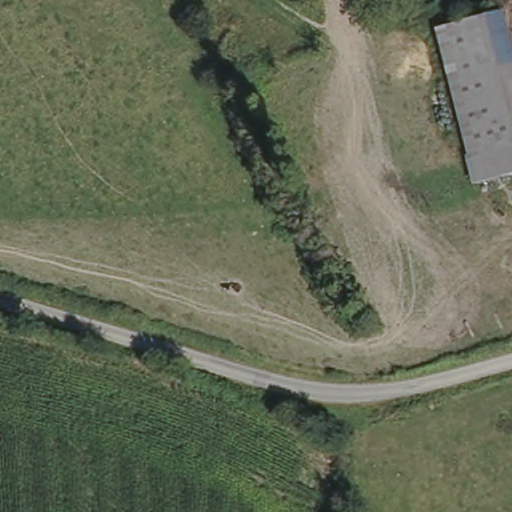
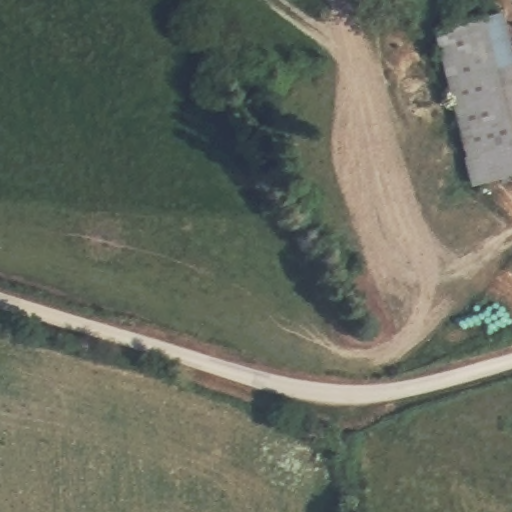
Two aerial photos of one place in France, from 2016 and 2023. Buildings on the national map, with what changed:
unchanged [(493,16),(503,63),(512,61),(512,171),(472,180),(437,27),(493,16)]

